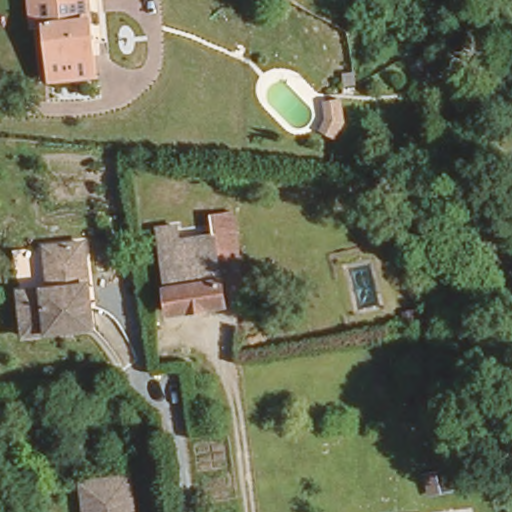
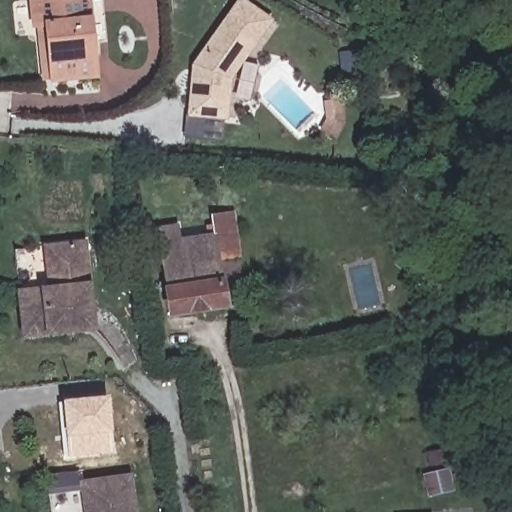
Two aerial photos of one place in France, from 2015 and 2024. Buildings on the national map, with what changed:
unchanged [(36,22),(33,0),(90,0),(98,70),(54,75),(46,76),(39,22),(36,22)]
new [(230,78),(227,119),(186,116),(190,65),(221,20),(254,43),(230,78)]
unchanged [(319,130),(312,116),(318,110),(317,99),(332,99),(335,120),(319,130)]
unchanged [(169,309),(158,241),(207,232),(230,228),(234,251),(210,255),(216,301),(169,309)]
unchanged [(42,281),(38,240),(74,237),(79,322),(16,327),(13,282),(42,281)]
new [(65,438),(61,400),(109,396),(112,432),(110,433),(113,454),(68,457),(65,438)]
unchanged [(97,512),(90,468),(100,466),(127,463),(134,512),(97,512)]
new [(82,478),(92,476),(97,512),(82,512),(79,491),(47,495),(46,475),(80,469),(82,478)]

